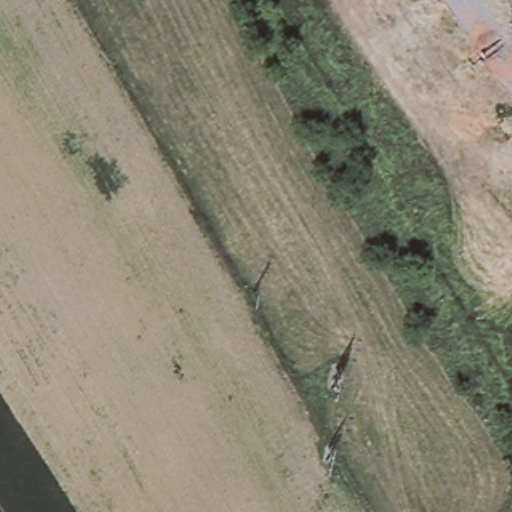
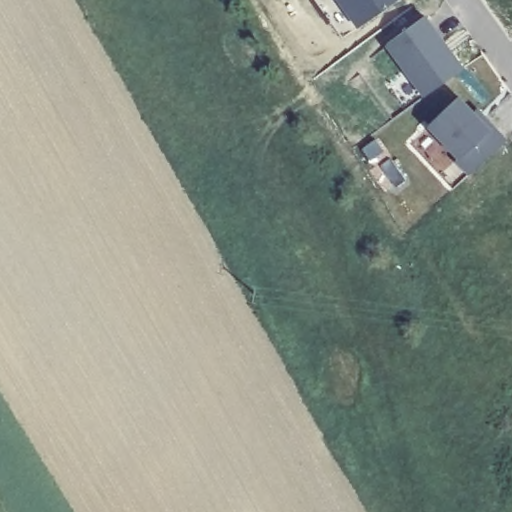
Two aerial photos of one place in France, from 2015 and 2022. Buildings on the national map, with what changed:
new [(337,0),(399,0),(358,29),(337,0)]
new [(463,67),(423,98),(383,46),(426,14),(463,67)]
new [(472,114),(475,111),(492,128),(505,143),(469,177),(457,163),(459,161),(427,126),(457,99),(472,114)]

